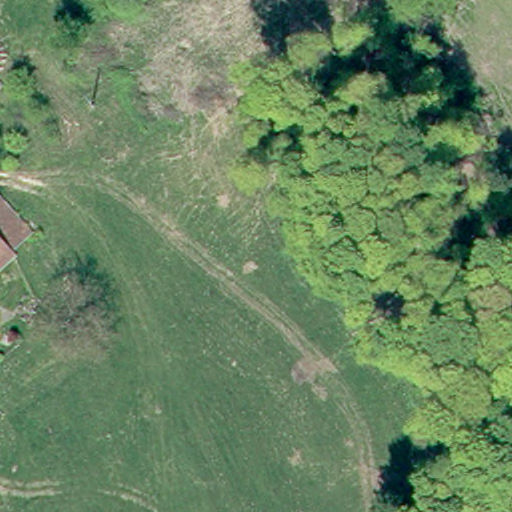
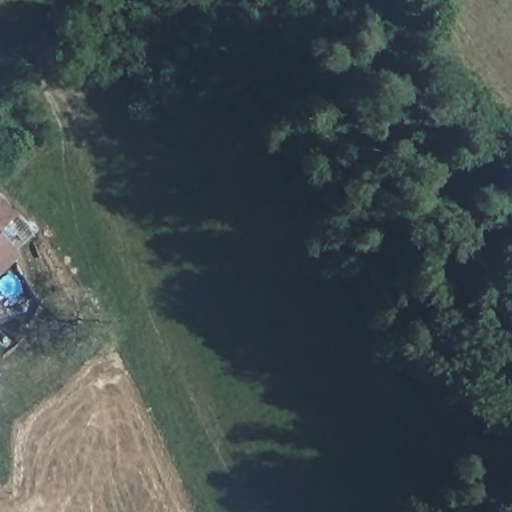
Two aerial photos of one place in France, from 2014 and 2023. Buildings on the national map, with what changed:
unchanged [(12,252),(0,240),(0,207),(28,235),(12,252)]
unchanged [(0,263),(0,240),(12,252),(0,263)]

